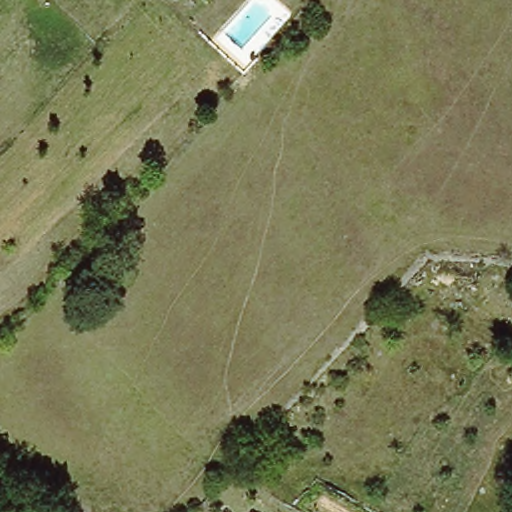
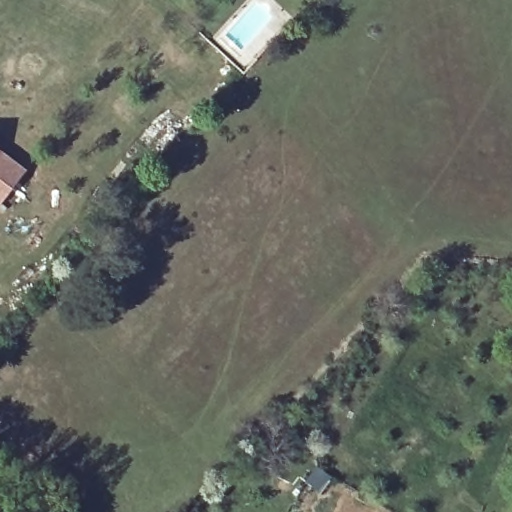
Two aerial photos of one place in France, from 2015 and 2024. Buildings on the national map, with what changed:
new [(28,169),(1,207),(0,206),(0,149),(28,169)]

